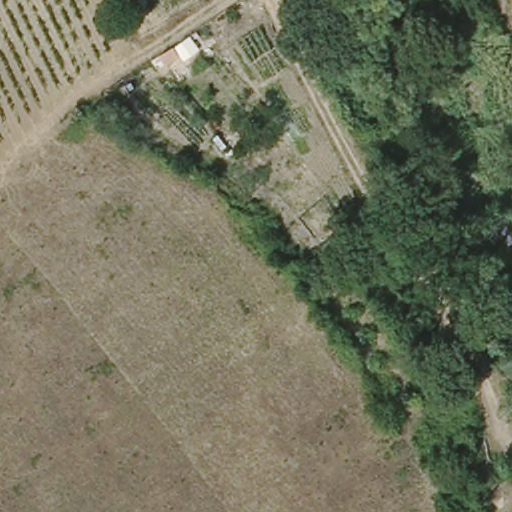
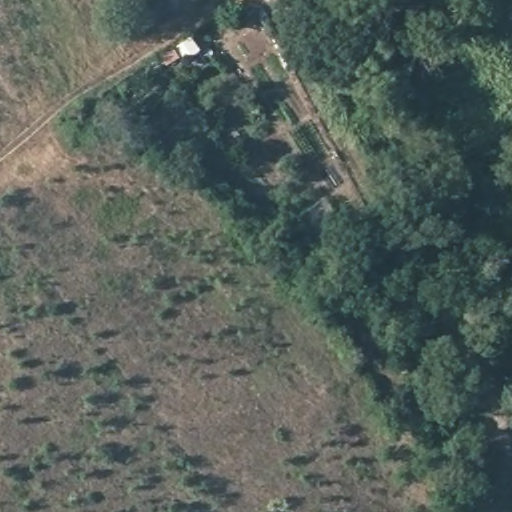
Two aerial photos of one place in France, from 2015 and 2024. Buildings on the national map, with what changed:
unchanged [(163,57),(181,46),(191,59),(174,72),(163,57)]

